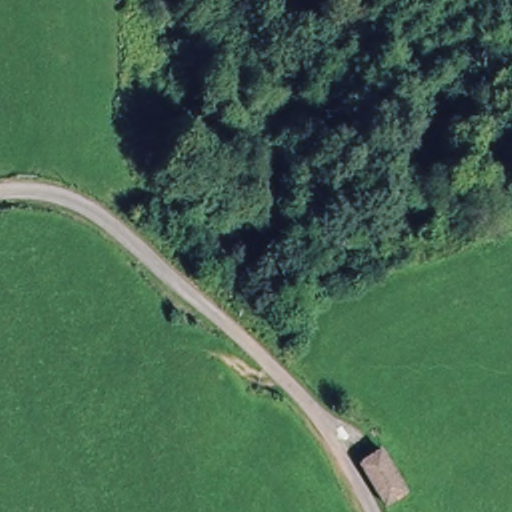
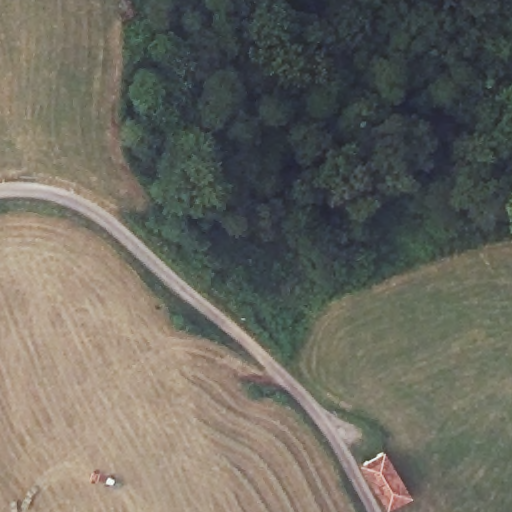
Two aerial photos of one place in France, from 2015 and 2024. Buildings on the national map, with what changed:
unchanged [(385,450),(412,492),(390,510),(363,466),(385,450)]

